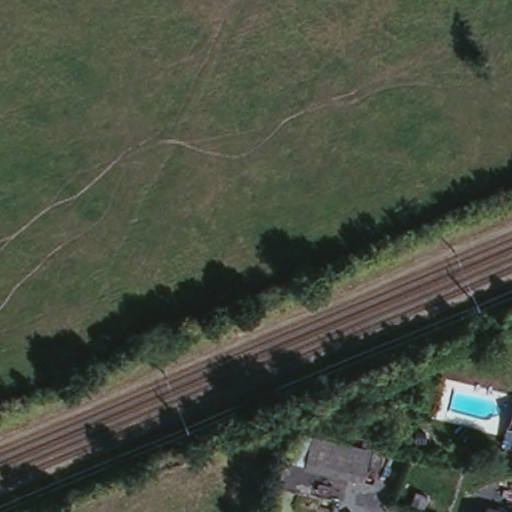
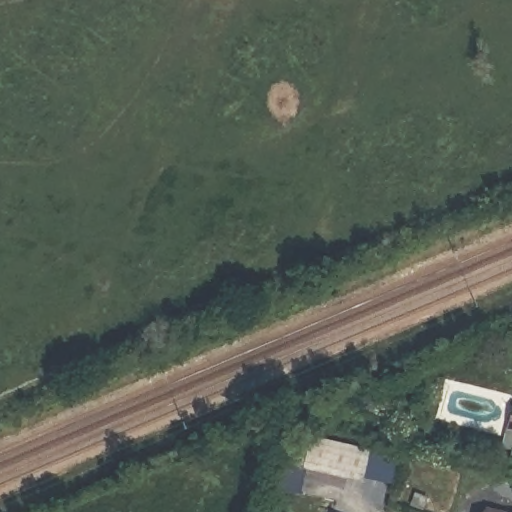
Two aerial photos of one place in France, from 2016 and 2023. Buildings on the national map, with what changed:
unchanged [(372,445),(365,478),(293,462),(302,430),(372,445)]
unchanged [(512,512),(485,512),(486,504),(512,510),(512,512)]

